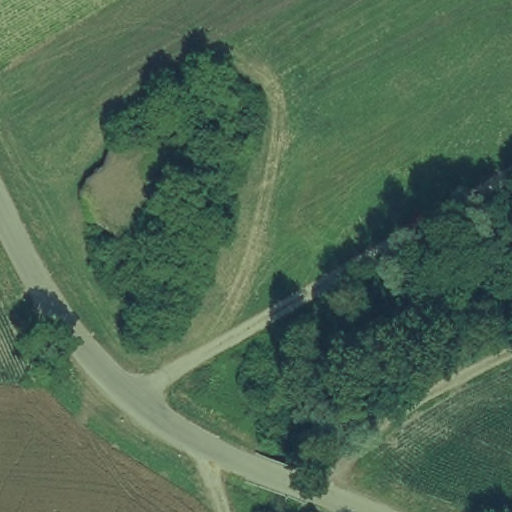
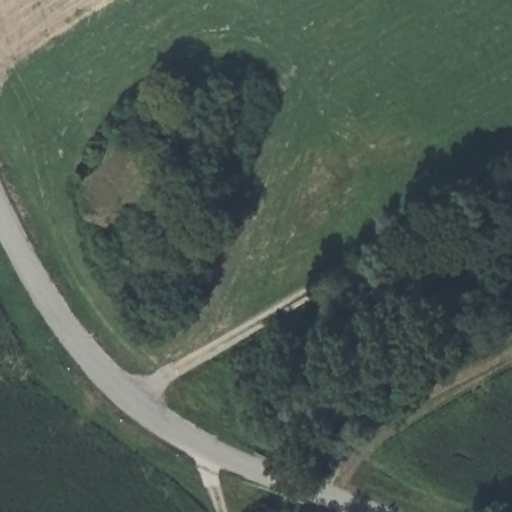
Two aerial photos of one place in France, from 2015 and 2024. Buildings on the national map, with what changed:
unchanged [(167,257),(118,261),(116,232),(97,217),(86,202),(86,185),(95,168),(107,164),(113,137),(162,135),(167,257)]

